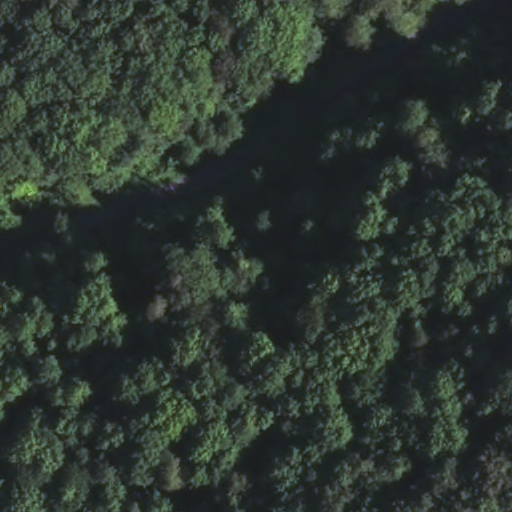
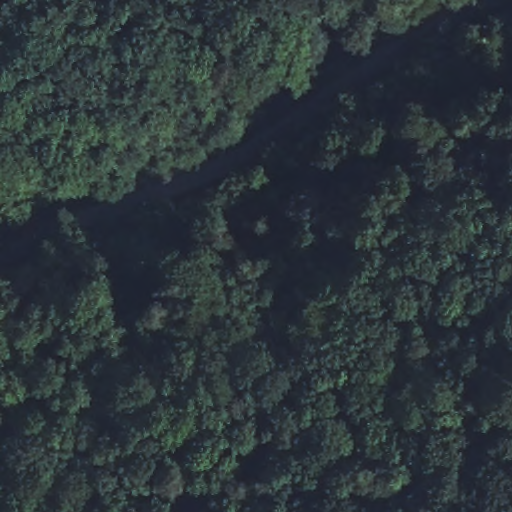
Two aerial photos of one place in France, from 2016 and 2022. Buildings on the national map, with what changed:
[]

